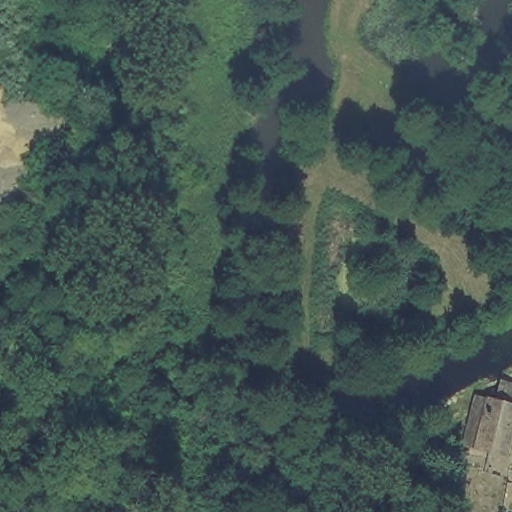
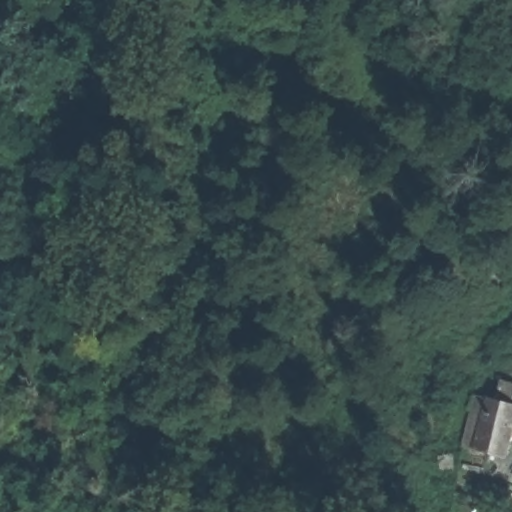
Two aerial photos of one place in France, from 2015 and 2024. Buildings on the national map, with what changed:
unchanged [(477,397),(488,391),(492,379),(512,379),(512,460),(470,449),(477,397)]

